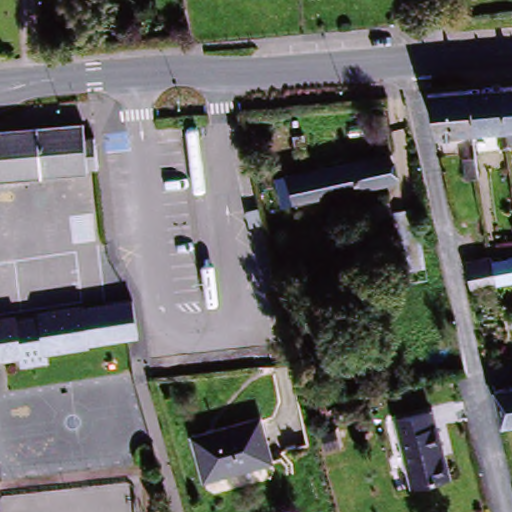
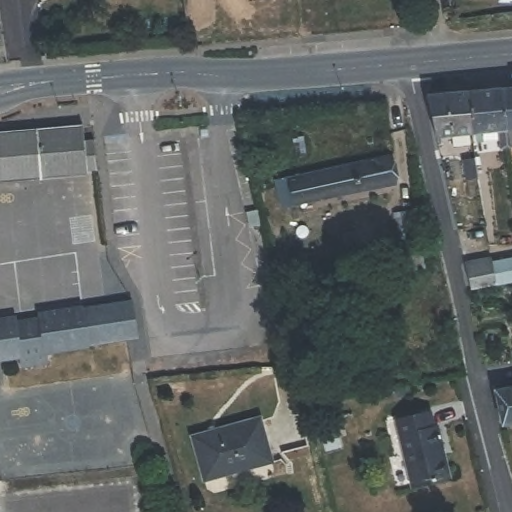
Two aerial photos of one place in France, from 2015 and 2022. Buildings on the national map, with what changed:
unchanged [(511,131),(506,89),(512,88),(512,130),(511,131)]
unchanged [(471,92),(506,89),(511,131),(512,135),(512,155),(503,155),(500,131),(476,133),(471,92)]
unchanged [(440,137),(435,95),(471,92),(476,133),(440,137)]
unchanged [(81,169),(82,172),(0,178),(0,130),(53,125),(80,123),(80,137),(90,137),(92,167),(82,169),(81,169)]
unchanged [(388,158),(395,186),(307,206),(301,176),(388,158)]
unchanged [(428,274),(406,278),(401,237),(421,234),(428,274)]
unchanged [(467,267),(489,262),(512,258),(512,284),(492,287),(472,291),(467,267)]
unchanged [(135,303),(140,340),(90,347),(89,338),(85,312),(135,303)]
unchanged [(19,325),(41,322),(40,317),(85,310),(85,312),(89,338),(90,347),(90,348),(49,355),(50,365),(23,370),(21,360),(0,363),(0,323),(17,321),(19,325)]
unchanged [(508,392),(512,391),(512,407),(508,392)]
unchanged [(412,486),(397,412),(433,407),(435,421),(440,420),(453,479),(412,486)]
unchanged [(258,420),(269,465),(202,485),(189,438),(258,420)]

